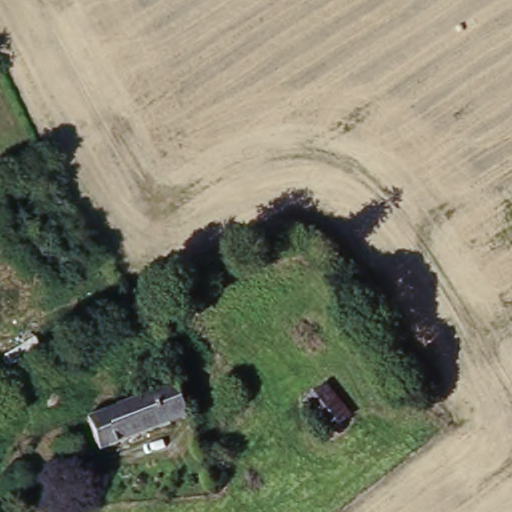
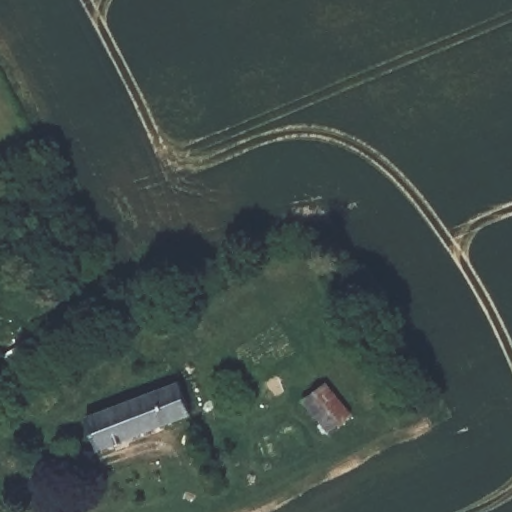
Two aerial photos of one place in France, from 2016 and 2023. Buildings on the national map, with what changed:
unchanged [(85,423),(155,397),(180,387),(191,418),(165,427),(95,453),(85,423)]
unchanged [(326,389),(350,417),(328,435),(305,405),(326,389)]

